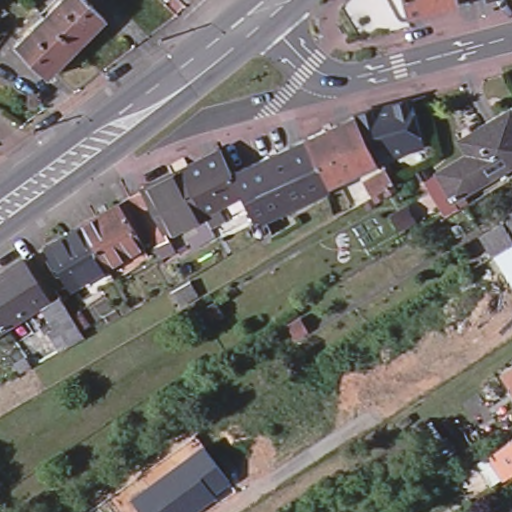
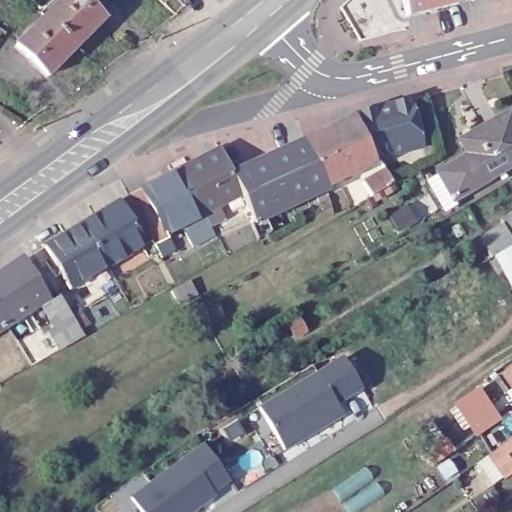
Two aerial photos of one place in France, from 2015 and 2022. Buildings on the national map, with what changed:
unchanged [(60,0),(86,0),(104,17),(75,46),(44,16),(60,0)]
unchanged [(406,12),(402,0),(451,0),(406,12)]
unchanged [(46,76),(15,45),(44,16),(75,46),(46,76)]
unchanged [(329,122),(357,109),(366,129),(377,156),(350,169),(329,122)]
unchanged [(414,111),(425,137),(377,156),(366,129),(414,111)]
unchanged [(457,146),(506,117),(507,119),(512,127),(512,168),(449,204),(435,179),(465,160),(459,148),(457,146)]
unchanged [(299,136),(329,122),(350,169),(320,183),(299,136)]
unchanged [(255,156),(299,136),(320,183),(321,185),(278,205),(255,156)]
unchanged [(160,229),(137,184),(175,165),(198,152),(197,150),(209,144),(211,146),(215,144),(226,169),(234,192),(214,202),(219,213),(205,221),(209,230),(188,241),(184,232),(195,226),(189,215),(160,229)]
unchanged [(249,219),(226,169),(255,156),(278,205),(249,219)]
unchanged [(360,178),(381,165),(390,179),(367,192),(360,178)]
unchanged [(113,195),(122,190),(122,191),(137,184),(160,229),(168,246),(156,252),(137,217),(129,222),(139,238),(101,261),(75,218),(113,195)]
unchanged [(492,253),(481,234),(501,223),(497,215),(512,206),(512,242),(492,253)]
unchanged [(66,281),(40,239),(75,218),(101,261),(66,281)]
unchanged [(41,297),(0,323),(0,269),(16,259),(41,297)]
unchanged [(190,279),(197,291),(179,303),(172,290),(190,279)]
unchanged [(37,306),(53,296),(78,336),(55,349),(44,330),(49,327),(37,306)]
new [(342,354),(364,390),(337,406),(344,417),(285,451),(258,407),(342,354)]
unchanged [(494,371),(512,361),(512,409),(494,371)]
new [(434,422),(455,454),(436,466),(415,435),(434,422)]
unchanged [(487,487),(472,465),(512,434),(512,470),(487,487)]
unchanged [(230,482),(215,491),(217,496),(195,512),(143,512),(132,496),(202,446),(230,482)]
demolished [(505,512),(512,507),(512,512),(505,512)]

